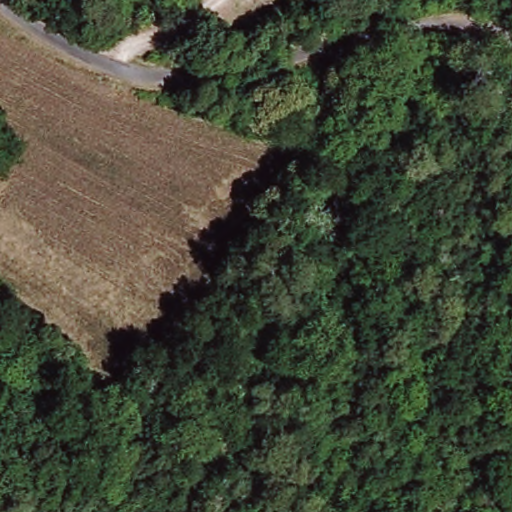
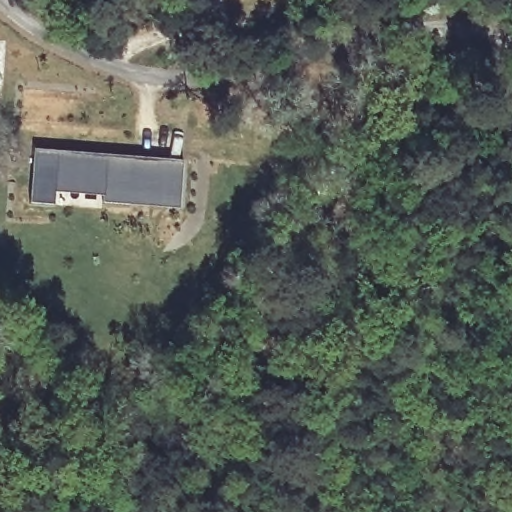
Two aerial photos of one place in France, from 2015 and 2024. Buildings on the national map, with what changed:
new [(178,207),(105,202),(105,194),(55,190),(54,204),(31,201),(35,150),(184,160),(178,207)]

